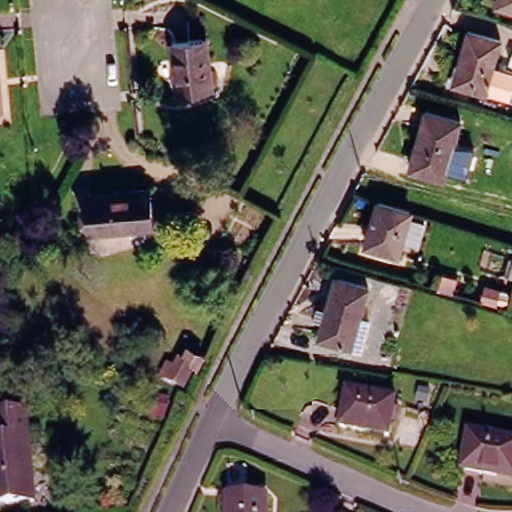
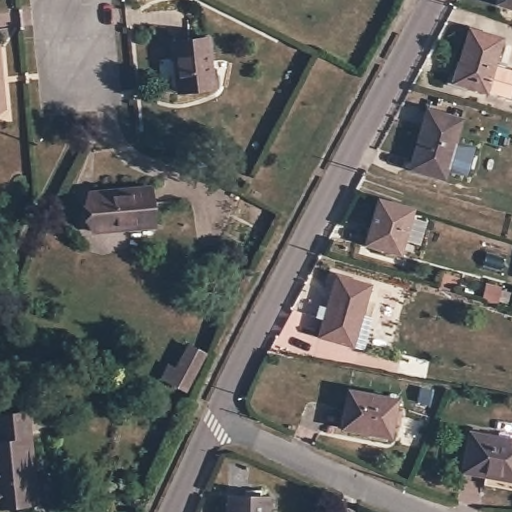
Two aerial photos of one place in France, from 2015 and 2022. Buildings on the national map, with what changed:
unchanged [(496,0),(512,0),(512,9),(495,4),(496,0)]
unchanged [(479,91),(447,81),(463,29),(495,38),(487,64),(487,65),(512,72),(512,85),(507,100),(479,91)]
unchanged [(177,91),(172,42),(206,37),(212,86),(177,91)]
unchanged [(2,108),(0,108),(0,85),(2,108)]
unchanged [(410,157),(424,104),(459,114),(442,173),(420,166),(407,163),(410,157)]
unchanged [(125,227),(125,225),(106,226),(106,229),(82,232),(79,197),(79,192),(82,192),(140,188),(141,205),(143,225),(125,227)]
unchanged [(360,238),(373,195),(405,204),(392,247),(360,238)]
unchanged [(366,299),(354,342),(344,340),(312,330),(317,312),(313,311),(318,295),(322,296),(330,271),(360,280),(357,296),(366,299)]
unchanged [(179,383),(156,371),(162,360),(169,363),(181,339),(197,347),(179,383)]
unchanged [(387,436),(340,427),(347,390),(380,397),(394,400),(387,436)]
unchanged [(0,506),(0,442),(0,416),(30,412),(39,502),(0,506)]
unchanged [(512,436),(512,473),(497,470),(496,473),(485,471),(460,467),(467,428),(512,436)]
unchanged [(227,491),(241,492),(241,485),(259,486),(259,492),(266,492),(265,512),(226,512),(226,510),(227,491)]

